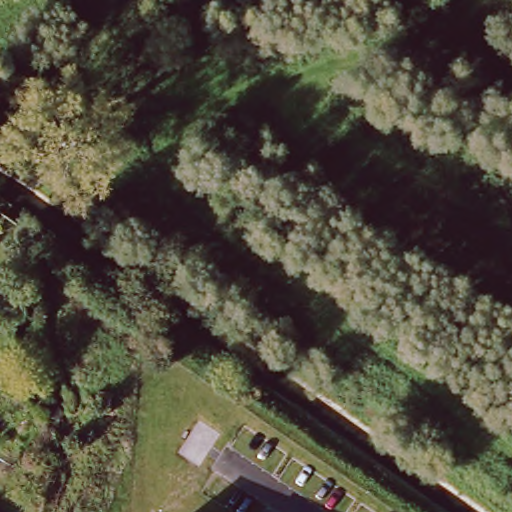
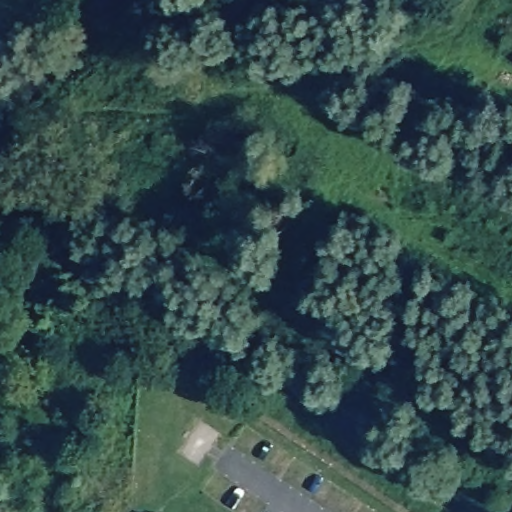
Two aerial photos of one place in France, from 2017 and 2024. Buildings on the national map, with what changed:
unchanged [(111,412),(99,411),(99,392),(112,393),(111,412)]

